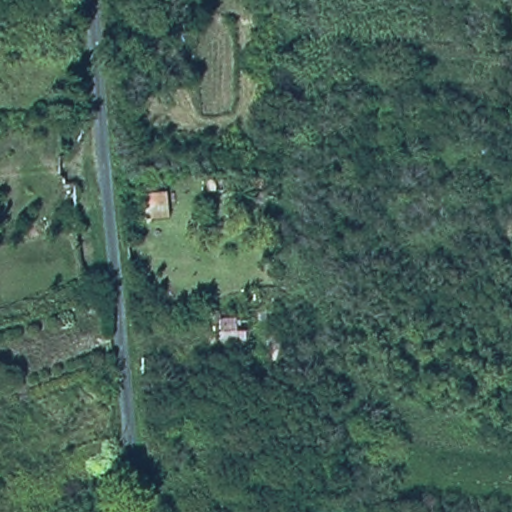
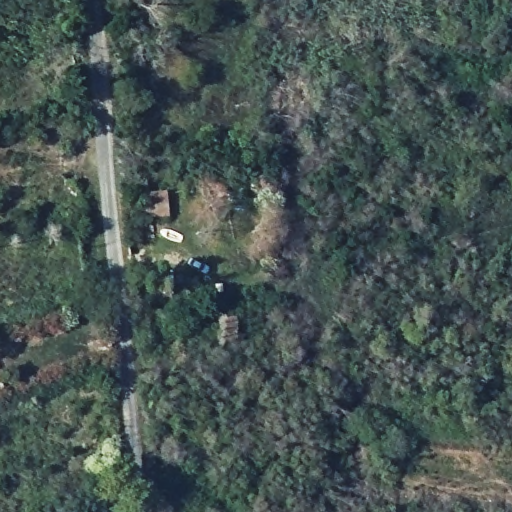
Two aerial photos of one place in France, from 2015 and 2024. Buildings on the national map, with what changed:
unchanged [(143,222),(138,184),(166,180),(168,218),(143,222)]

